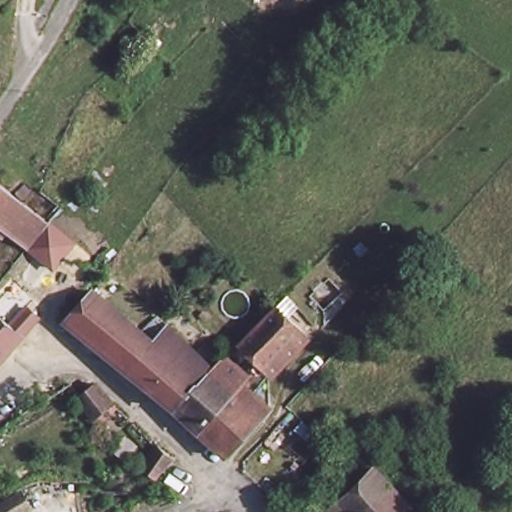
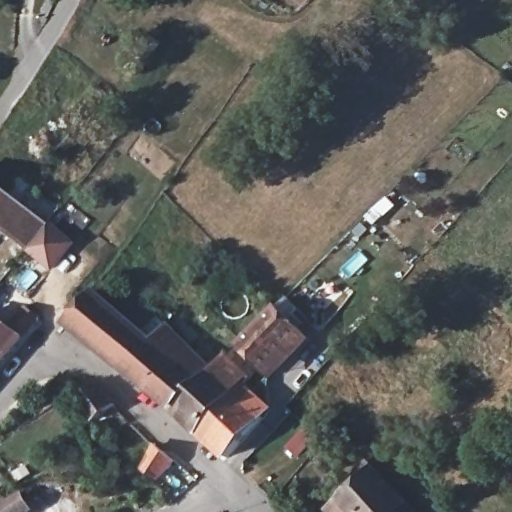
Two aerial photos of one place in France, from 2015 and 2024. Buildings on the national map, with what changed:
unchanged [(21,248),(0,231),(0,190),(43,223),(21,248)]
unchanged [(143,394),(59,327),(57,326),(86,296),(89,299),(139,340),(146,332),(154,323),(205,377),(165,414),(143,394)]
unchanged [(18,303),(30,314),(0,348),(0,319),(2,320),(18,303)]
unchanged [(257,371),(231,346),(273,305),(297,331),(257,371)]
unchanged [(205,377),(219,363),(242,384),(229,399),(257,424),(220,462),(165,414),(205,377)]
unchanged [(87,384),(106,405),(85,420),(72,401),(71,398),(87,384)]
unchanged [(168,458),(148,480),(136,470),(148,445),(168,458)]
unchanged [(348,487),(340,478),(352,468),(360,459),(410,512),(337,512),(330,505),(348,487)]
unchanged [(0,512),(0,500),(10,494),(11,493),(22,509),(17,512),(0,512)]

